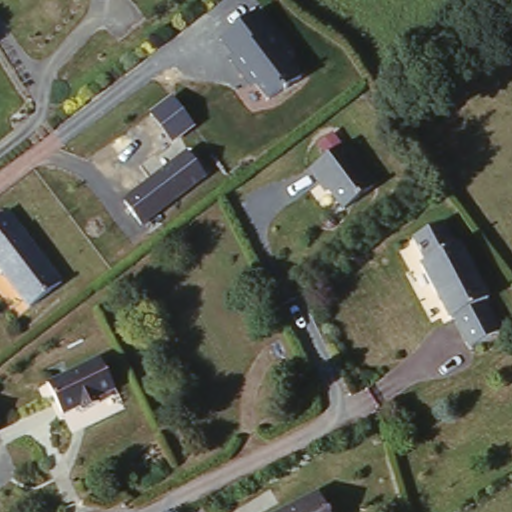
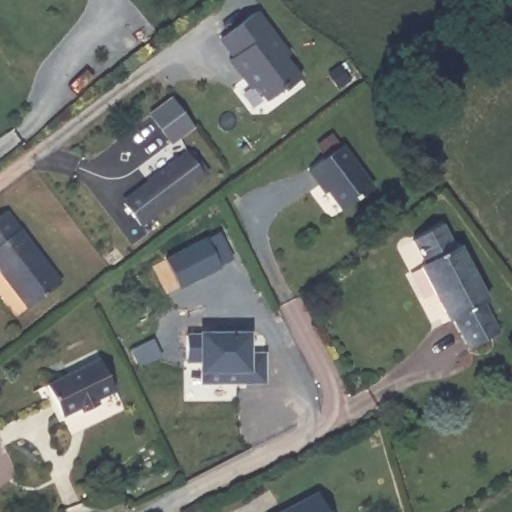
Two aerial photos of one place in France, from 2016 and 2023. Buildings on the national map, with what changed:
unchanged [(293,49),(289,54),(304,72),(268,100),(258,84),(251,87),(231,57),(234,55),(220,34),(258,5),(293,49)]
unchanged [(192,126),(171,142),(149,112),(171,95),(192,126)]
unchanged [(346,139),(375,180),(344,202),(327,177),(323,180),(312,164),(346,139)]
unchanged [(190,150),(207,174),(141,224),(124,200),(190,150)]
unchanged [(4,210),(57,281),(22,305),(0,276),(0,212),(4,210)]
unchanged [(442,224),(453,245),(458,242),(487,297),(481,300),(495,327),(464,342),(451,316),(445,320),(417,265),(423,261),(412,239),(442,224)]
new [(249,336),(247,355),(267,355),(267,384),(200,385),(201,363),(187,363),(187,336),(249,336)]
unchanged [(102,356),(119,389),(99,398),(103,405),(84,413),(81,407),(64,415),(49,381),(102,356)]
unchanged [(325,512),(271,512),(317,491),(325,512)]

